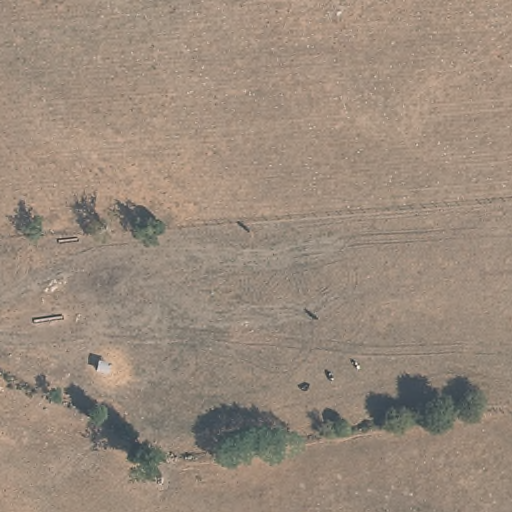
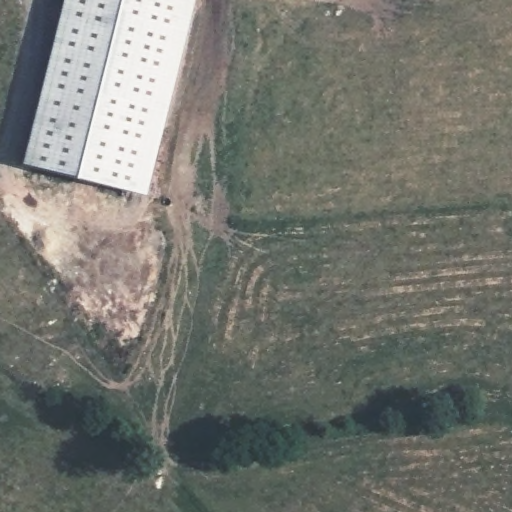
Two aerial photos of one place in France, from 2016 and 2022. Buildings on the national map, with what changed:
new [(195,0),(147,195),(23,165),(63,0),(195,0)]

